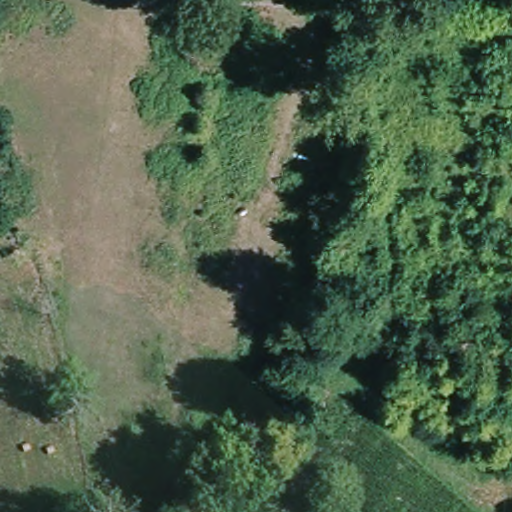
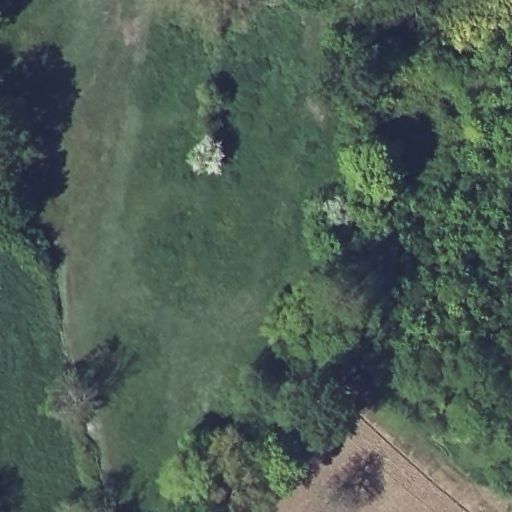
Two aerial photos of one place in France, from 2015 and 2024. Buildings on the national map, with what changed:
[]

